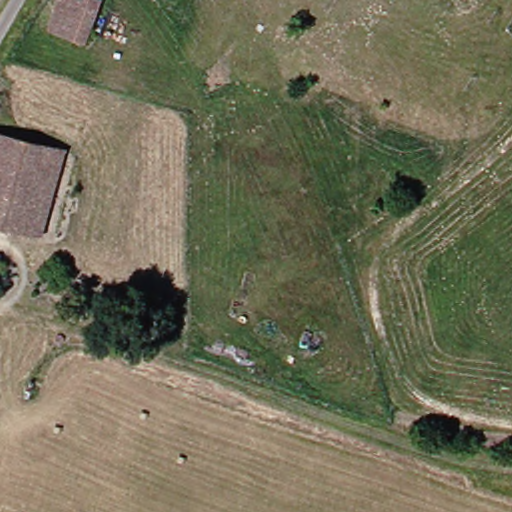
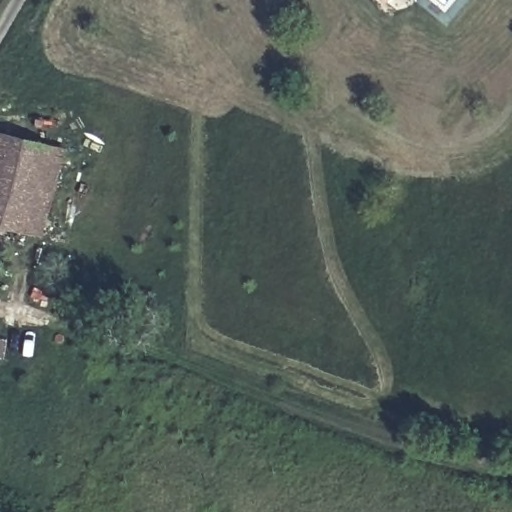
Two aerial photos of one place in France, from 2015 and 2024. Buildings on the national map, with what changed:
demolished [(99,37),(50,26),(50,24),(55,6),(61,8),(64,8),(66,1),(66,0),(108,0),(99,37)]
unchanged [(63,177),(76,180),(73,194),(59,191),(56,208),(66,210),(63,232),(0,221),(0,125),(69,140),(63,177)]

